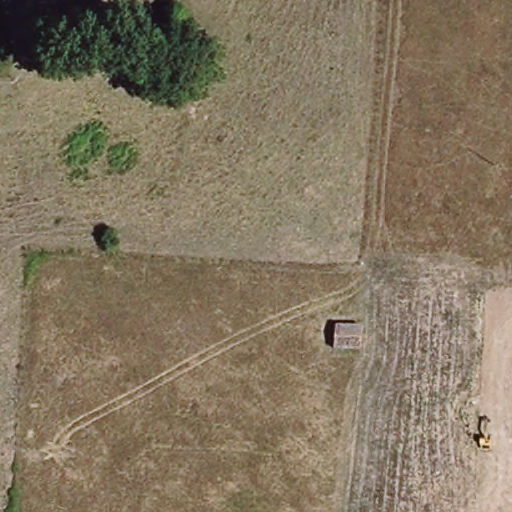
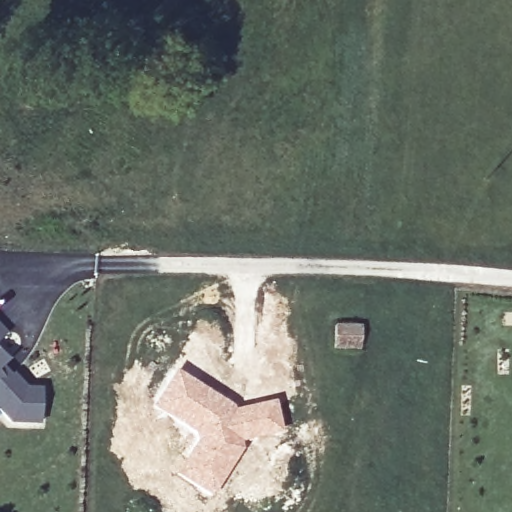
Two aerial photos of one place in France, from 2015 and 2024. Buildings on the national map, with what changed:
new [(334,326),(360,326),(359,350),(333,348),(334,326)]
new [(0,336),(0,328),(4,332),(0,336)]
new [(0,364),(0,351),(6,357),(0,364)]
new [(175,370),(201,385),(236,407),(276,400),(282,432),(246,441),(239,455),(213,496),(177,473),(198,437),(152,405),(175,370)]
new [(11,371),(25,386),(41,387),(40,410),(24,409),(24,418),(10,418),(0,407),(0,374),(4,378),(11,371)]

